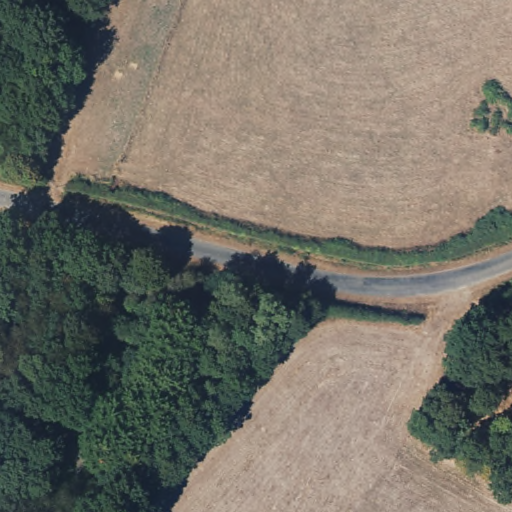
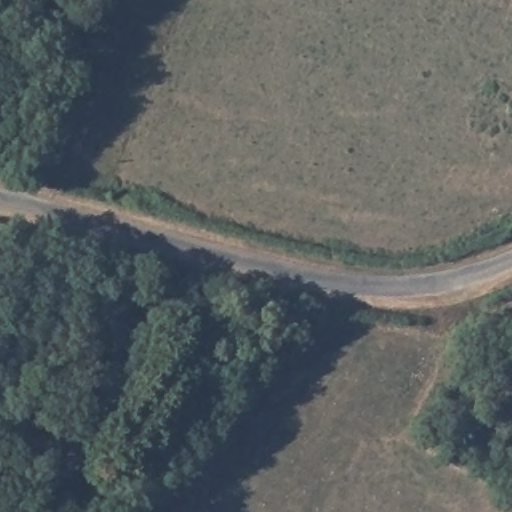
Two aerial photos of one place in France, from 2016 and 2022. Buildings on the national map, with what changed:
unchanged [(84,457),(62,477),(49,466),(69,441),(84,457)]

